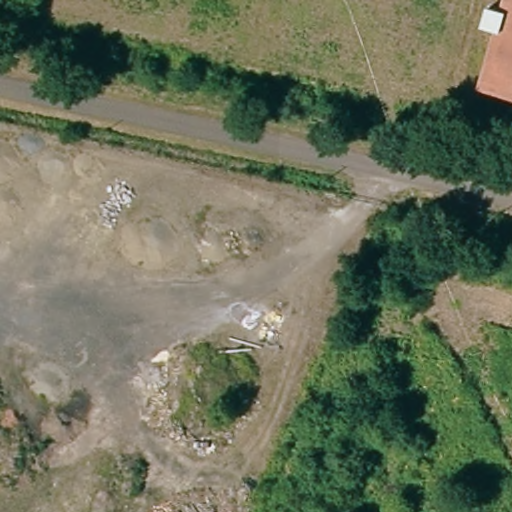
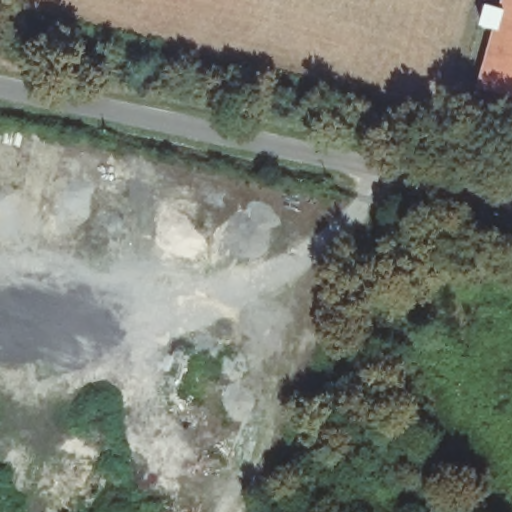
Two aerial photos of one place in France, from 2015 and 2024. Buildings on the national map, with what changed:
unchanged [(488,90),(501,37),(484,32),(491,6),(507,10),(509,0),(512,0),(512,96),(488,90)]

